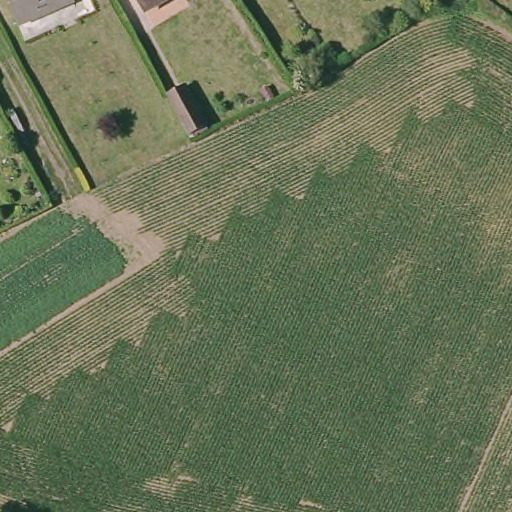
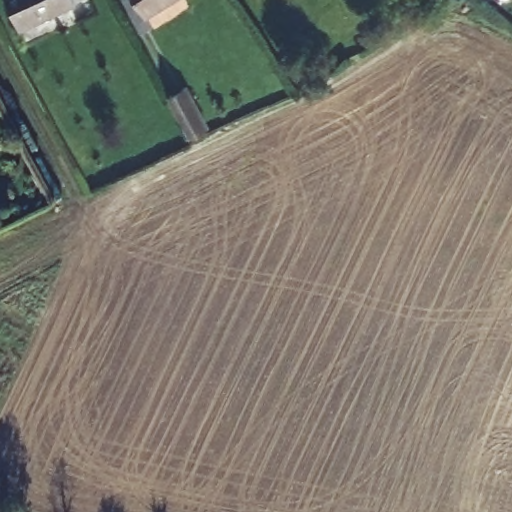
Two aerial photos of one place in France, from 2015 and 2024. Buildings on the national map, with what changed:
unchanged [(6,0),(69,0),(70,5),(10,17),(6,0)]
unchanged [(138,0),(160,0),(143,9),(138,0)]
unchanged [(190,69),(215,110),(190,121),(167,79),(190,69)]

